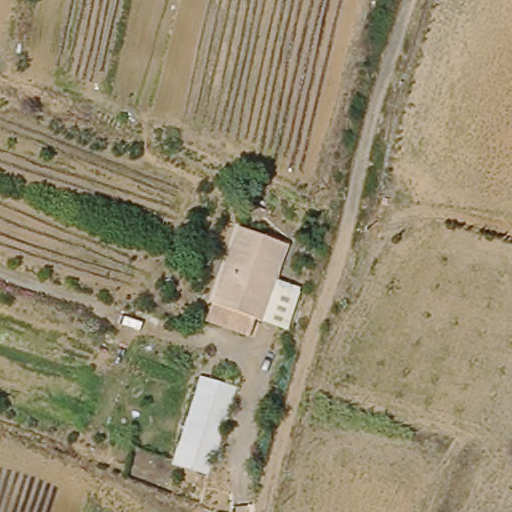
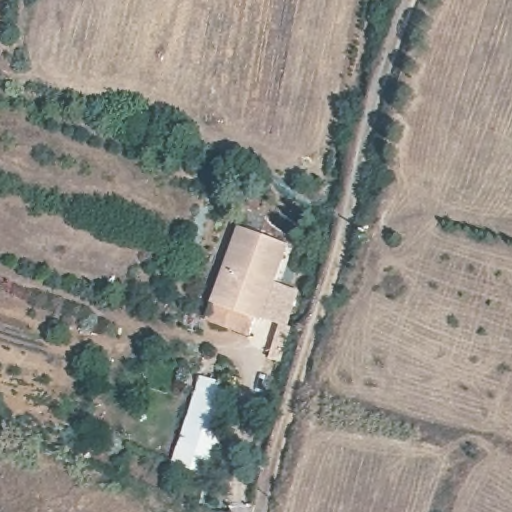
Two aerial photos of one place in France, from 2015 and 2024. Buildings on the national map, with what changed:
unchanged [(293,242),(279,276),(299,285),(287,315),(267,307),(253,340),(200,318),(238,221),(293,242)]
unchanged [(207,476),(173,466),(202,376),(235,386),(207,476)]

